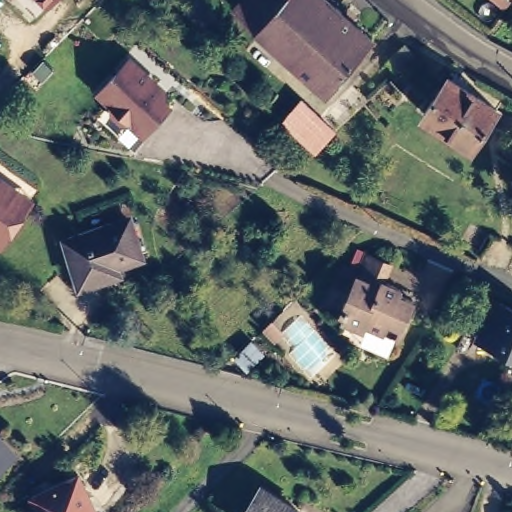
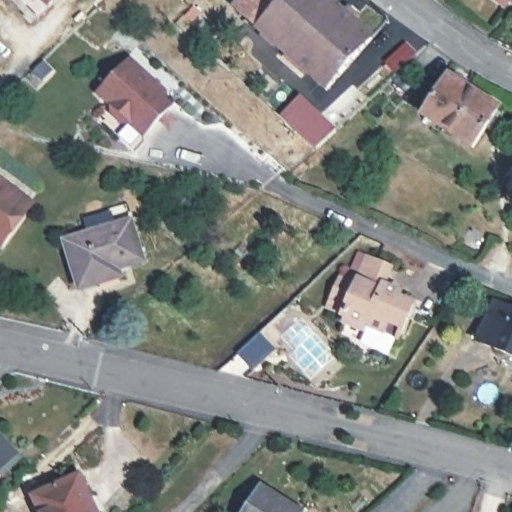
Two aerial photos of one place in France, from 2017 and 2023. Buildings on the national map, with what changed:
unchanged [(333,0),(369,33),(325,81),(234,2),(236,0),(333,0)]
unchanged [(402,34),(412,43),(393,61),(384,52),(402,34)]
unchanged [(129,58),(156,83),(157,92),(169,104),(144,132),(131,120),(123,120),(113,111),(112,103),(111,102),(99,91),(129,58)]
unchanged [(443,66),(446,68),(449,63),(462,71),(458,77),(491,99),(490,100),(497,105),(487,121),(479,116),(467,135),(418,104),(443,66)]
unchanged [(304,97),(342,131),(318,152),(284,123),(304,97)]
unchanged [(0,233),(0,176),(28,196),(0,233)]
unchanged [(125,213),(135,241),(109,249),(113,258),(75,269),(63,233),(125,213)]
unchanged [(380,339),(364,332),(362,338),(344,330),(346,325),(345,323),(325,314),(339,285),(354,291),(356,286),(354,285),(364,261),(391,273),(384,290),(399,297),(396,304),(411,311),(399,336),(395,346),(380,339)]
unchanged [(494,293),(512,302),(512,350),(474,332),(494,293)]
unchanged [(0,462),(0,434),(14,447),(0,462)]
unchanged [(75,468),(97,512),(40,512),(29,492),(75,468)]
unchanged [(264,484),(300,509),(298,512),(246,512),(264,484)]

